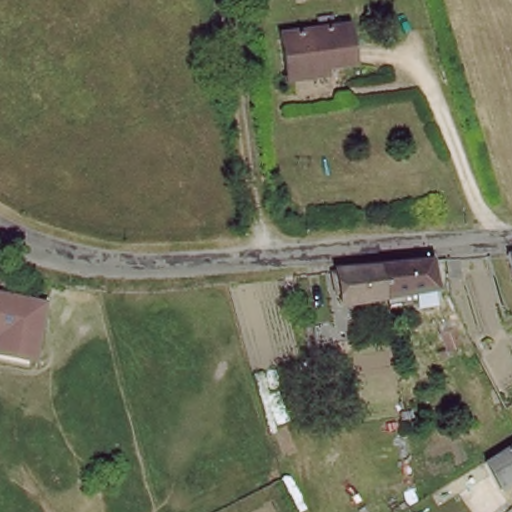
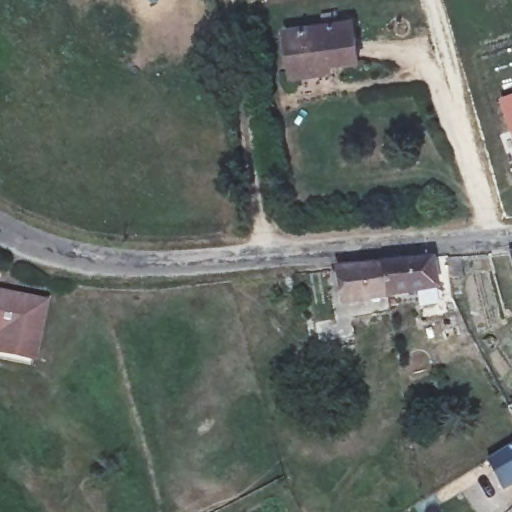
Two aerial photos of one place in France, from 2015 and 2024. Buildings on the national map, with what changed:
unchanged [(316,75),(294,79),(285,30),(354,20),(360,56),(331,62),(332,72),(316,75)]
new [(500,99),(512,95),(512,131),(500,99)]
unchanged [(451,278),(447,254),(460,252),(465,281),(452,283),(451,278)]
unchanged [(392,291),(389,270),(400,269),(407,268),(438,265),(443,292),(394,301),(392,291)]
unchanged [(392,291),(394,301),(348,308),(344,274),(366,272),(387,271),(389,270),(392,291)]
unchanged [(43,352),(14,347),(0,344),(0,286),(53,298),(43,352)]
unchanged [(334,415),(373,408),(376,431),(338,437),(334,415)]
unchanged [(506,488),(491,461),(495,458),(512,448),(512,485),(506,488)]

